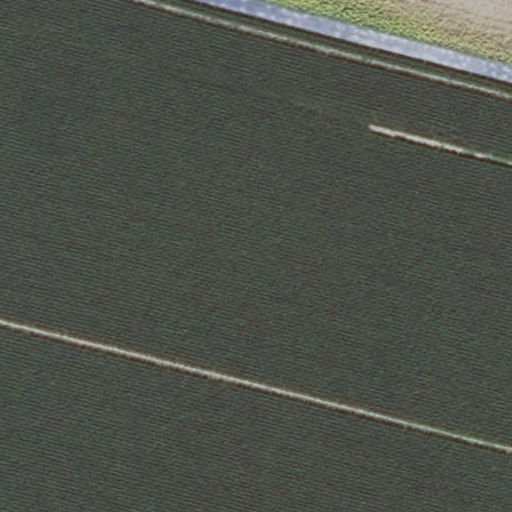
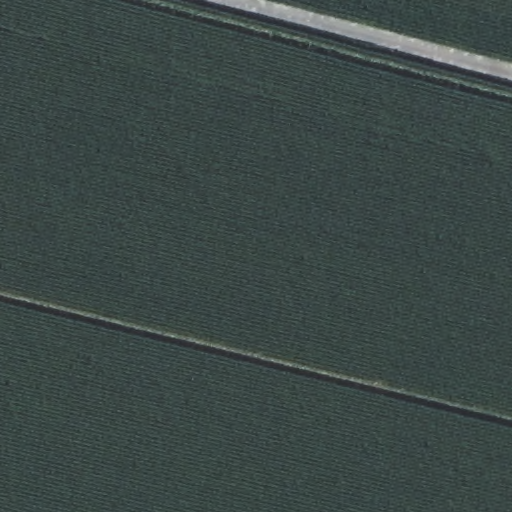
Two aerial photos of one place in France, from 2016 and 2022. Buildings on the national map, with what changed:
[]

